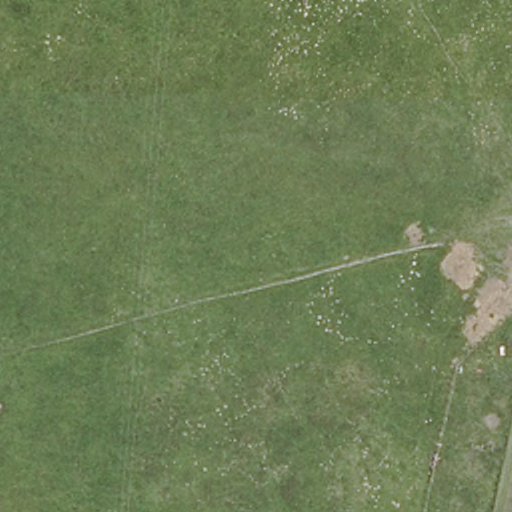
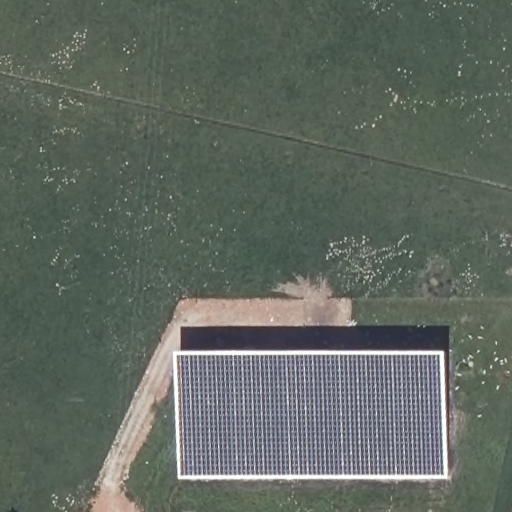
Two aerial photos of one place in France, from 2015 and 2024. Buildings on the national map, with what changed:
new [(181,478),(181,351),(451,351),(451,478),(181,478)]

